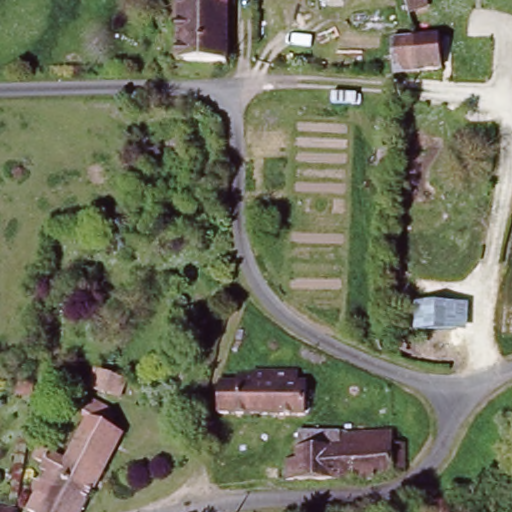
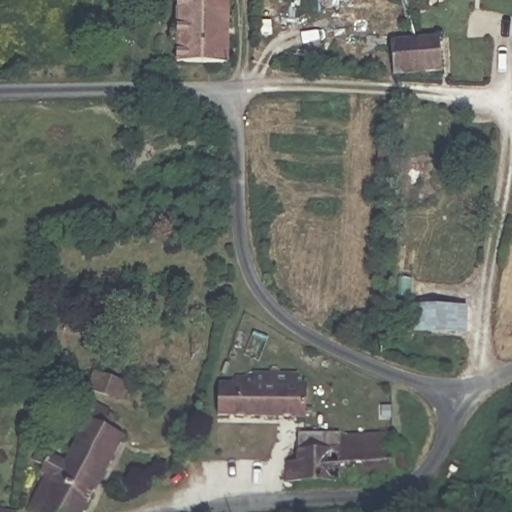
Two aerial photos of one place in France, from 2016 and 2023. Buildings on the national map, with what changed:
unchanged [(228,62),(179,60),(180,0),(230,0),(228,62)]
unchanged [(414,11),(406,12),(402,0),(411,0),(414,11)]
unchanged [(414,34),(439,33),(441,64),(416,65),(394,65),(393,35),(414,34)]
unchanged [(53,272),(55,232),(94,235),(91,275),(53,272)]
unchanged [(107,370),(122,376),(114,392),(100,385),(107,370)]
unchanged [(221,381),(238,381),(238,376),(258,376),(258,371),(300,371),(300,381),(307,381),(307,413),(219,411),(221,381)]
unchanged [(54,459),(44,455),(50,443),(65,451),(89,410),(84,408),(95,393),(120,413),(115,422),(129,430),(96,490),(54,468),(50,466),(54,459)]
unchanged [(293,454),(302,455),(303,442),(346,441),(347,428),(400,430),(401,437),(411,437),(411,466),(398,467),(398,470),(339,476),(291,475),(293,454)]
unchanged [(36,506),(54,468),(96,490),(83,512),(47,512),(47,511),(36,506)]
unchanged [(457,500),(458,512),(421,512),(420,501),(457,500)]

